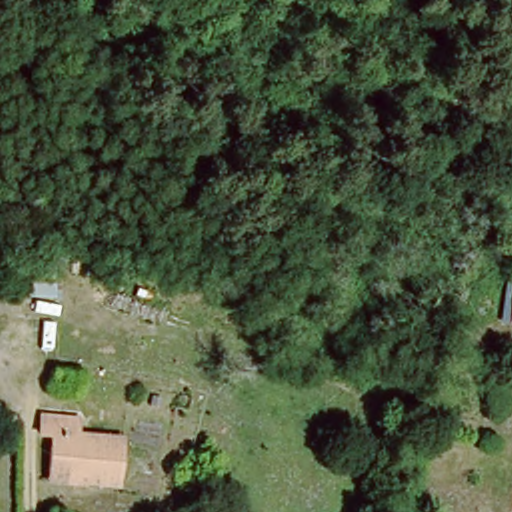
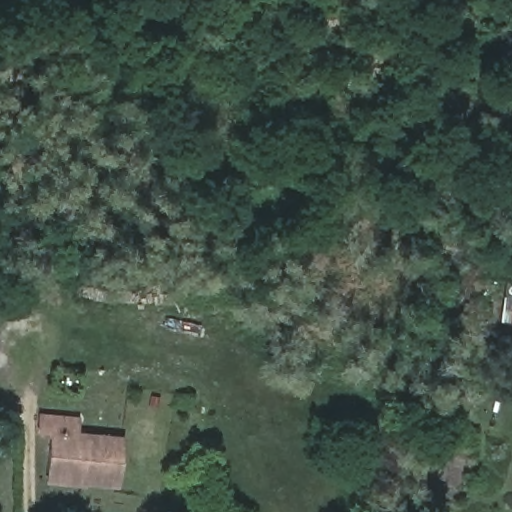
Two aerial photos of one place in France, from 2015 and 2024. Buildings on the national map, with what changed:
unchanged [(512,328),(491,325),(496,288),(512,291),(512,328)]
unchanged [(44,472),(47,439),(34,437),(35,421),(76,424),(74,440),(117,444),(113,490),(81,487),(43,483),(44,472)]

